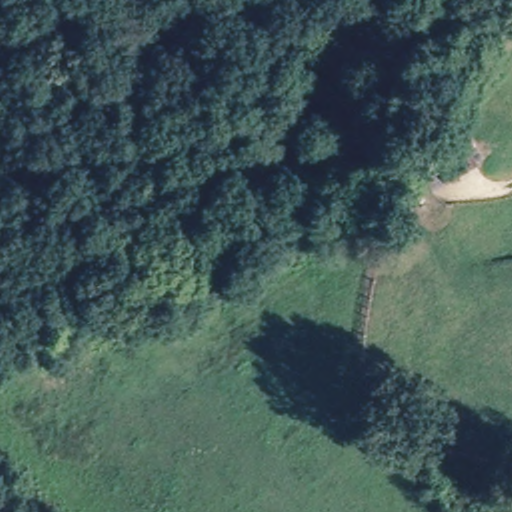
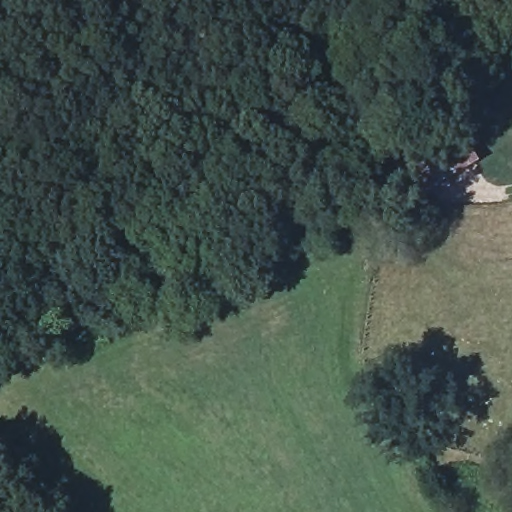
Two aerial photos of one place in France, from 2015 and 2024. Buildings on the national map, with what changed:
unchanged [(366,211),(416,181),(429,205),(382,236),(366,211)]

